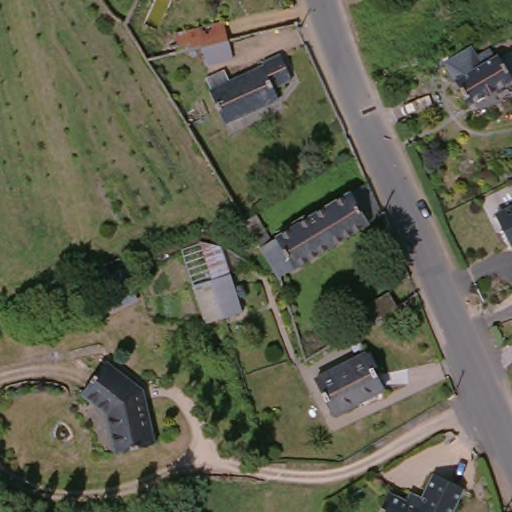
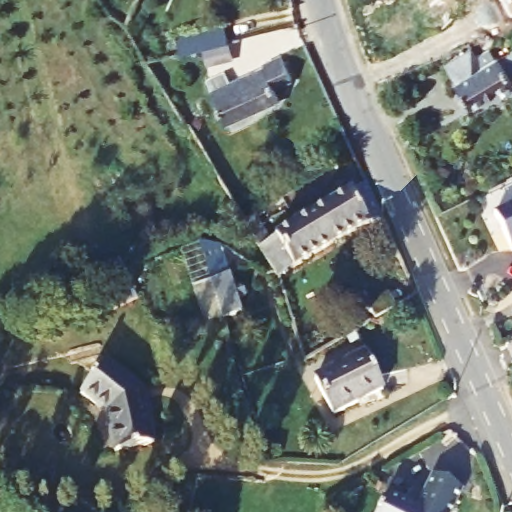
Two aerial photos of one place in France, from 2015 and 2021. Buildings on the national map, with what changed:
unchanged [(211,72),(206,54),(175,62),(173,53),(182,51),(179,40),(229,29),(233,47),(238,66),(211,72)]
unchanged [(501,71),(509,66),(512,70),(512,74),(504,78),(507,82),(464,106),(439,64),(467,48),(477,66),(493,57),(501,71)]
unchanged [(284,106),(229,129),(211,85),(229,77),(234,89),(269,73),(267,70),(286,62),(296,86),(279,93),(284,106)]
unchanged [(373,183),(388,218),(283,280),(279,273),(249,224),(260,217),(276,242),(373,183)]
unchanged [(494,220),(512,212),(512,256),(494,220)]
unchanged [(242,313),(224,319),(199,244),(222,248),(242,313)]
unchanged [(136,302),(122,307),(113,287),(127,281),(136,302)]
unchanged [(389,295),(397,308),(376,321),(368,307),(389,295)]
unchanged [(362,349),(354,353),(347,339),(355,335),(362,349)]
unchanged [(384,391),(334,417),(315,381),(367,355),(384,391)]
unchanged [(163,446),(125,454),(116,417),(91,394),(117,363),(153,394),(163,446)]
unchanged [(463,487),(452,512),(379,512),(388,493),(406,501),(410,492),(422,498),(434,474),(463,487)]

